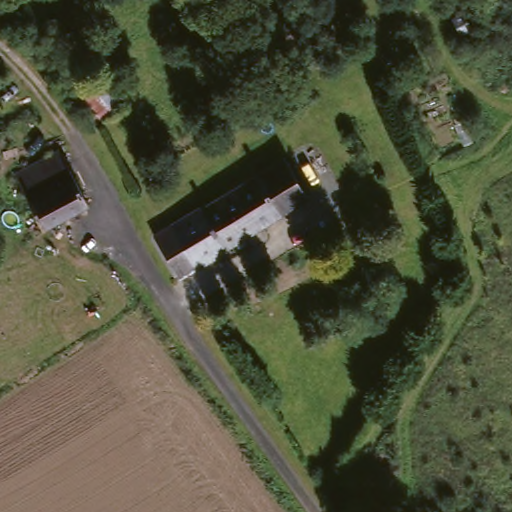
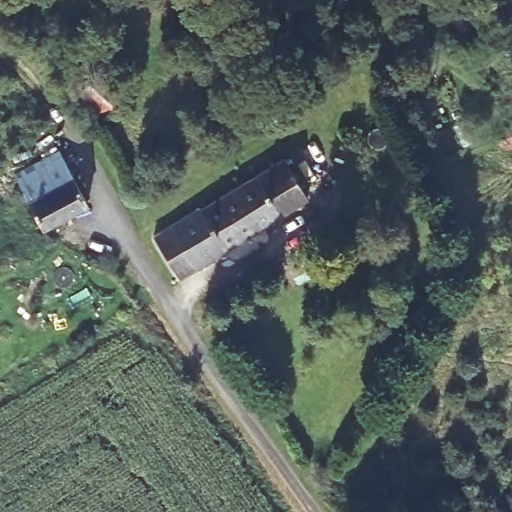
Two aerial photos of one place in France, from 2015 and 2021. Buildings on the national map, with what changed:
unchanged [(104,130),(75,94),(92,69),(124,103),(104,130)]
unchanged [(56,150),(86,204),(44,225),(14,174),(56,150)]
unchanged [(261,178),(254,168),(269,158),(276,169),(288,161),(316,199),(236,250),(209,209),(261,178)]
unchanged [(209,209),(236,250),(188,281),(160,240),(209,209)]

